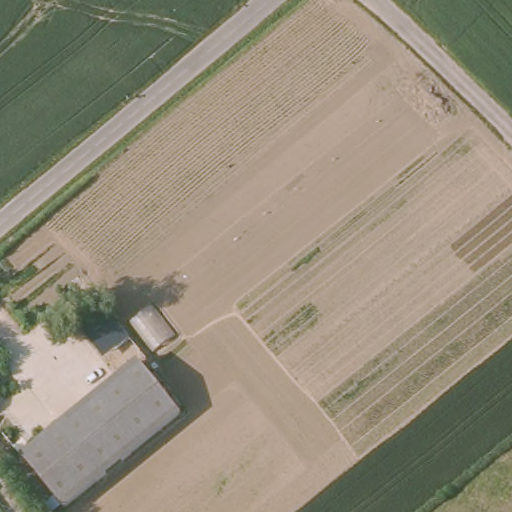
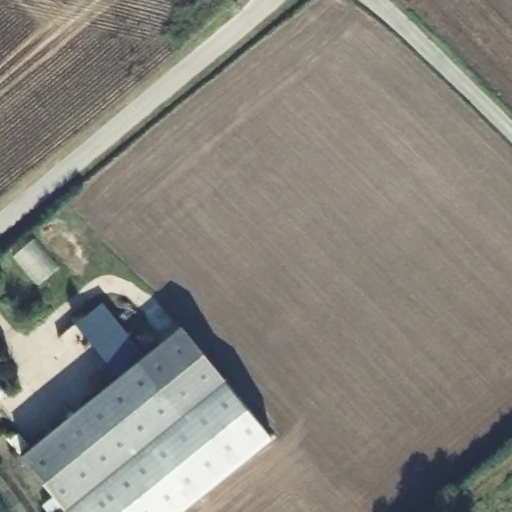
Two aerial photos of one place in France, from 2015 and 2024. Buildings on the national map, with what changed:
unchanged [(147,357),(177,331),(217,384),(65,509),(22,454),(120,376),(77,321),(104,301),(147,357)]
new [(272,438),(182,512),(68,512),(65,509),(217,384),(272,438)]

